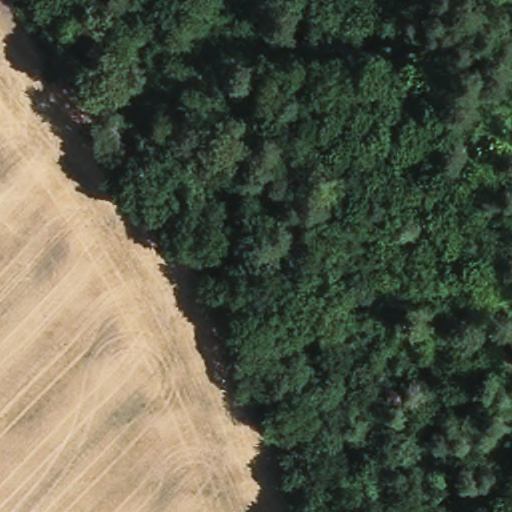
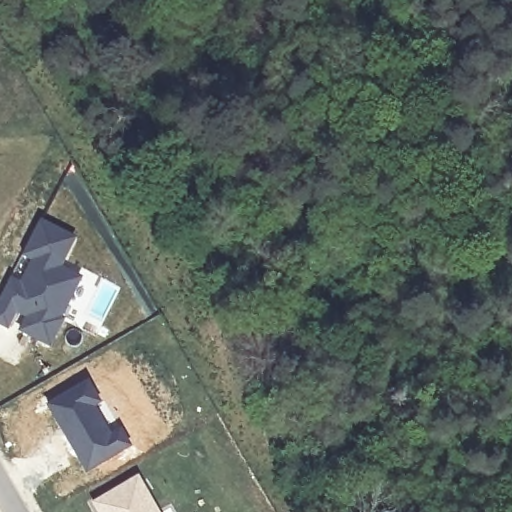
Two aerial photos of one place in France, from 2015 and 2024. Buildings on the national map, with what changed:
new [(40,217),(77,236),(63,265),(82,275),(51,346),(19,330),(25,318),(17,313),(7,330),(0,326),(0,295),(40,217)]
new [(89,378),(104,403),(99,405),(112,430),(120,426),(132,446),(87,472),(47,403),(89,378)]
new [(162,511),(174,505),(178,512),(103,512),(97,501),(142,475),(162,511)]

